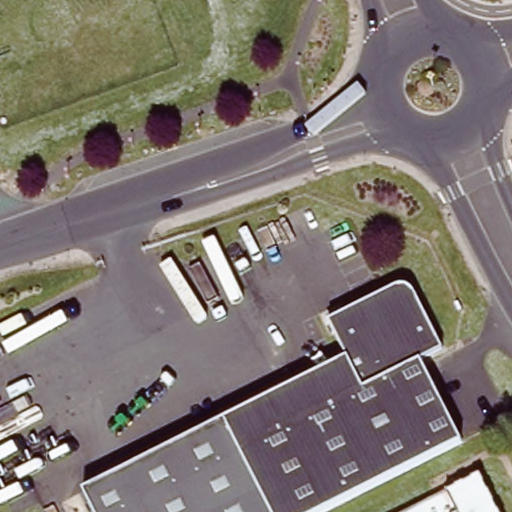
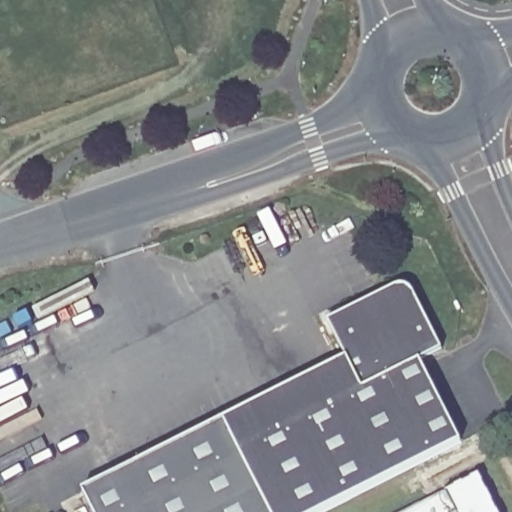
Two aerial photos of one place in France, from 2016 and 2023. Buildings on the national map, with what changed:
unchanged [(400,285),(402,284),(406,285),(409,287),(412,289),(416,295),(442,348),(442,350),(439,351),(420,361),(462,442),(322,512),(94,512),(83,490),(223,420),(346,359),(327,322),(400,285)]
unchanged [(498,512),(397,512),(477,471),(498,512)]

